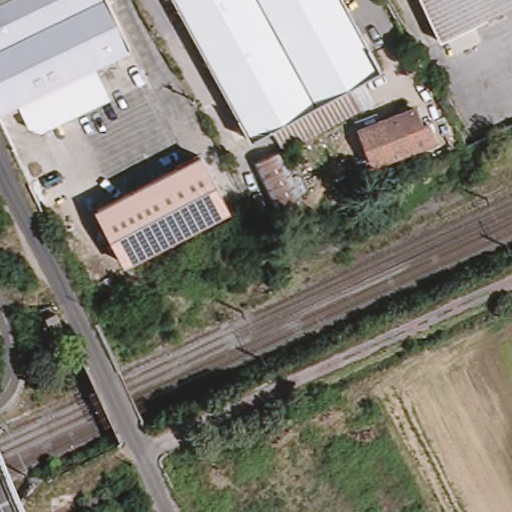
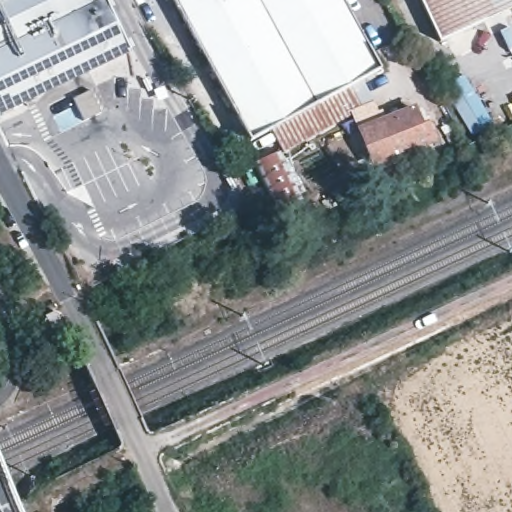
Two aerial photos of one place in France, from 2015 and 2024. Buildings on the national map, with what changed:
unchanged [(0,0),(11,0),(0,5),(0,0)]
unchanged [(0,5),(11,0),(110,0),(135,52),(0,116),(0,114),(0,5)]
unchanged [(350,84),(276,125),(256,136),(225,80),(182,0),(350,0),(385,65),(350,84)]
unchanged [(427,0),(512,0),(512,9),(446,40),(427,0)]
unchanged [(363,107),(289,147),(276,125),(350,84),(363,107)]
new [(91,89),(103,112),(84,121),(74,98),(91,89)]
unchanged [(364,125),(418,105),(423,120),(429,118),(436,137),(378,158),(364,125)]
unchanged [(469,111),(482,134),(468,141),(455,118),(469,111)]
unchanged [(284,149),(307,197),(281,208),(259,161),(284,149)]
demolished [(124,265),(96,212),(176,171),(200,159),(221,197),(228,211),(155,249),(124,265)]
demolished [(43,176),(58,205),(41,214),(28,184),(43,176)]

